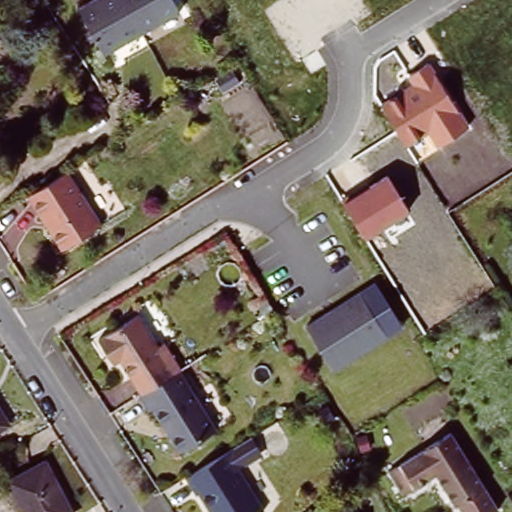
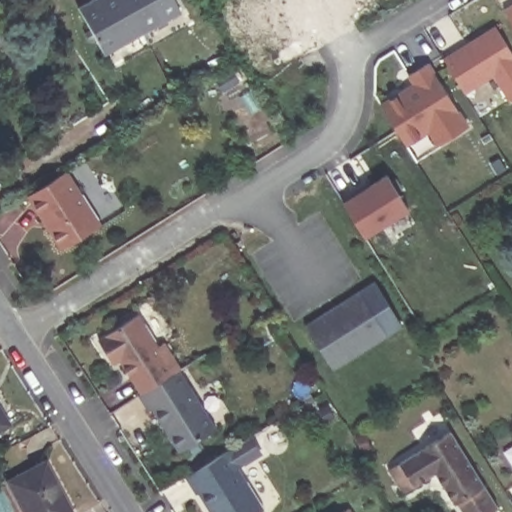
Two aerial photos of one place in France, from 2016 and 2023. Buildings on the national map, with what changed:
unchanged [(112,54),(107,57),(78,11),(98,0),(168,0),(169,2),(106,42),(112,54)]
unchanged [(106,42),(169,2),(177,17),(112,54),(106,42)]
new [(496,25),(512,51),(512,98),(507,101),(493,76),(465,92),(443,56),(496,25)]
unchanged [(470,124),(438,145),(428,131),(407,144),(380,104),(411,84),(407,77),(429,63),(470,124)]
unchanged [(101,227),(61,251),(28,198),(67,173),(101,227)]
unchanged [(387,175),(410,210),(365,237),(343,202),(387,175)]
unchanged [(312,325),(362,292),(375,282),(402,325),(389,334),(338,367),(312,325)]
unchanged [(269,322),(264,314),(276,306),(281,314),(269,322)]
unchanged [(115,355),(113,357),(101,339),(142,312),(161,343),(166,340),(185,368),(180,372),(142,396),(115,355)]
unchanged [(180,372),(217,432),(182,456),(155,411),(150,414),(139,398),(142,396),(180,372)]
unchanged [(0,421),(3,426),(0,428),(0,421)]
unchanged [(494,510),(492,512),(457,512),(453,506),(450,508),(430,478),(397,500),(382,475),(417,451),(442,434),(494,510)]
unchanged [(240,468),(265,510),(262,512),(212,512),(200,492),(198,493),(187,475),(235,446),(247,464),(240,468)]
unchanged [(43,462),(70,512),(21,512),(5,482),(43,462)]
unchanged [(344,512),(343,512),(343,511),(344,512)]

